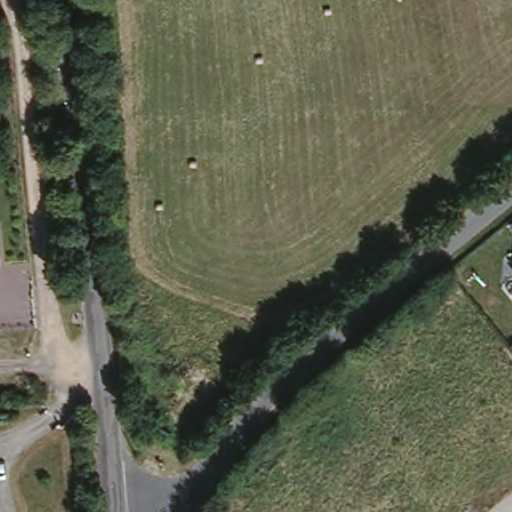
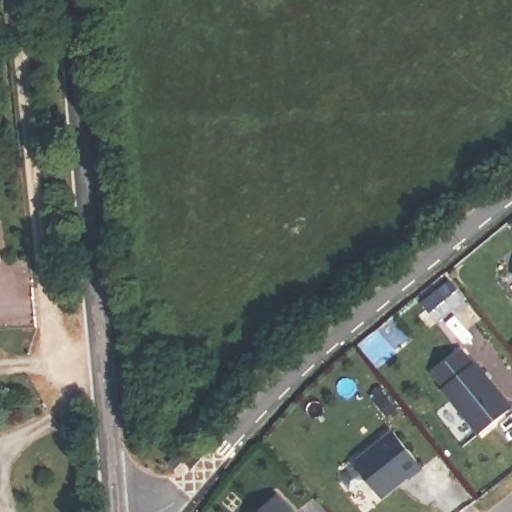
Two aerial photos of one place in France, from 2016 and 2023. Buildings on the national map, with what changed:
unchanged [(0,258),(0,243),(3,258),(0,258)]
new [(470,371),(472,370),(508,415),(476,441),(439,396),(441,395),(430,381),(459,358),(470,371)]
new [(355,467),(391,439),(420,475),(406,485),(402,480),(376,501),(354,474),(355,467)]
new [(284,512),(264,512),(275,502),(284,512)]

